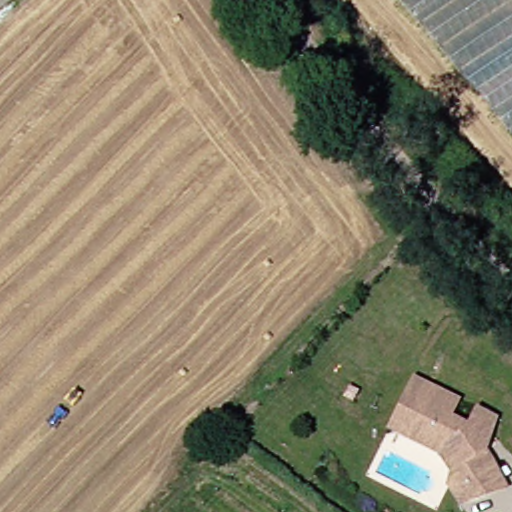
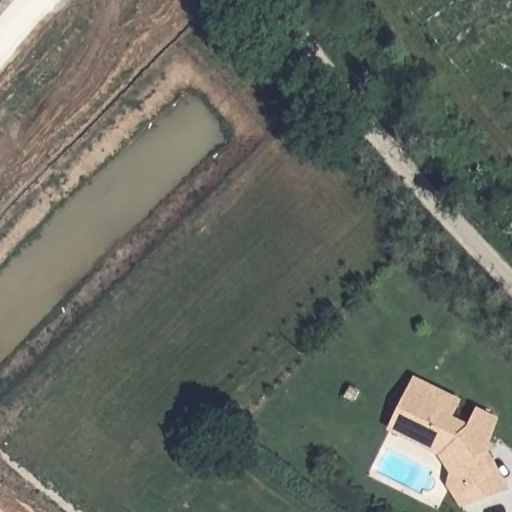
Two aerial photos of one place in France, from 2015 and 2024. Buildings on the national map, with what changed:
new [(404,0),(512,0),(512,129),(404,0)]
unchanged [(462,400),(453,416),(472,425),(480,408),(499,418),(485,445),(494,460),(467,476),(446,446),(396,420),(418,376),(462,400)]
unchanged [(463,502),(451,483),(454,470),(441,451),(392,426),(396,420),(446,446),(467,476),(494,460),(508,488),(480,497),(463,502)]

